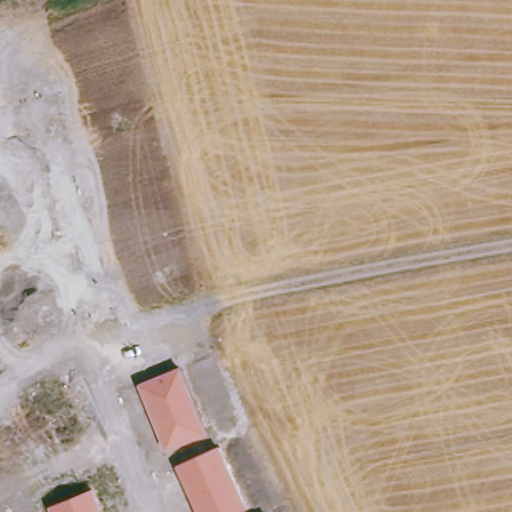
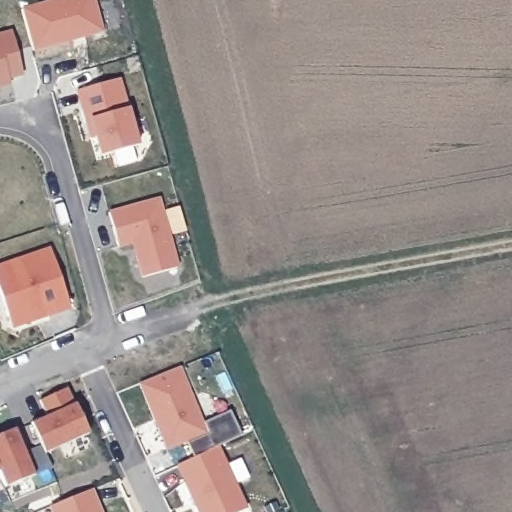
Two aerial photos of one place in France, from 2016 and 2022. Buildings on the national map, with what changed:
new [(22,7),(50,0),(94,0),(103,34),(34,52),(22,7)]
new [(14,30),(25,72),(10,75),(12,81),(0,84),(0,33),(14,30)]
new [(97,156),(92,139),(87,139),(77,92),(119,79),(129,109),(137,145),(97,156)]
new [(110,212),(160,198),(179,267),(140,277),(130,245),(119,249),(110,212)]
new [(50,249),(70,310),(12,327),(0,293),(0,265),(50,249)]
unchanged [(139,384),(180,366),(207,435),(165,450),(139,384)]
new [(72,403),(87,432),(43,451),(30,425),(47,418),(39,401),(65,389),(72,403)]
new [(230,412),(241,436),(218,446),(195,458),(187,442),(207,435),(202,423),(230,412)]
new [(32,476),(5,487),(0,474),(0,435),(14,430),(32,476)]
unchanged [(218,446),(247,509),(240,512),(196,512),(177,467),(218,446)]
unchanged [(93,488),(103,512),(50,512),(48,507),(93,488)]

